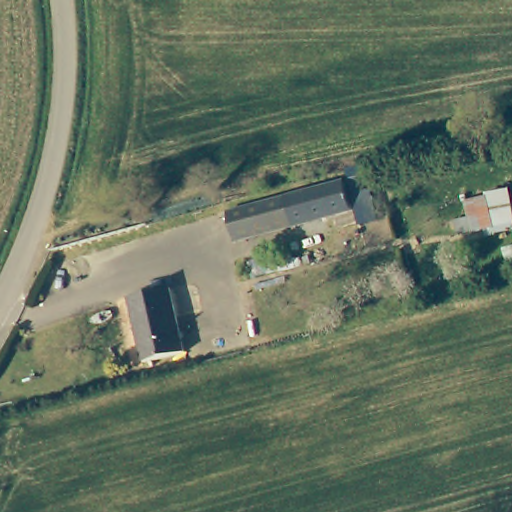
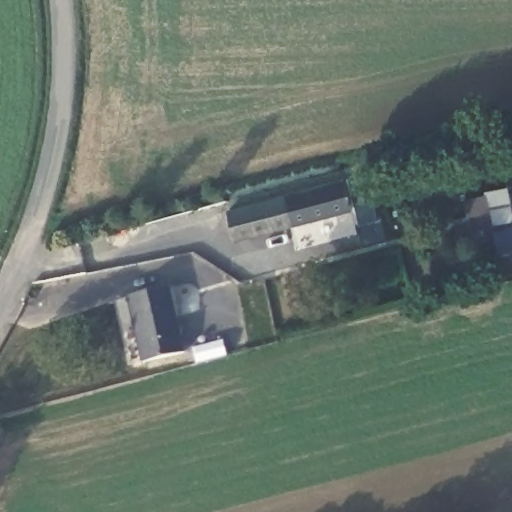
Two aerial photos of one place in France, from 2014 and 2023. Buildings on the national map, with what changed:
unchanged [(287,200),(229,216),(228,211),(346,178),(344,170),(365,162),(367,175),(380,222),(358,227),(353,212),(294,225),(287,200)]
unchanged [(453,224),(477,217),(475,198),(508,191),(512,203),(512,227),(456,237),(453,224)]
unchanged [(229,216),(287,200),(295,229),(237,245),(229,216)]
unchanged [(175,296),(192,356),(149,368),(132,307),(130,300),(173,287),(175,296)]

